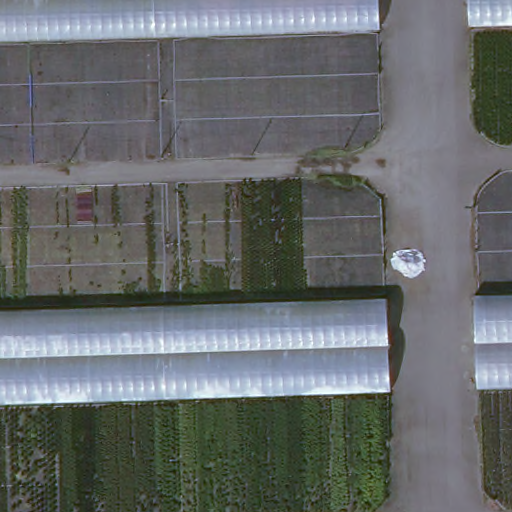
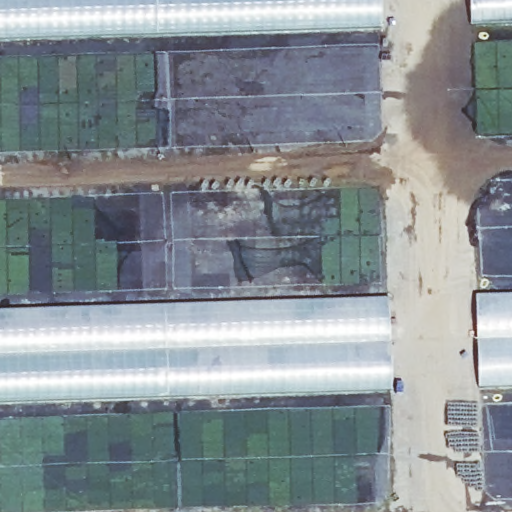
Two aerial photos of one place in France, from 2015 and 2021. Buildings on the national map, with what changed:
unchanged [(385,27),(0,40),(0,0),(384,0),(385,27)]
unchanged [(512,24),(476,25),(475,0),(512,0),(512,24)]
unchanged [(512,387),(481,387),(480,292),(512,292),(512,387)]
unchanged [(393,298),(396,390),(0,401),(0,309),(393,298)]

